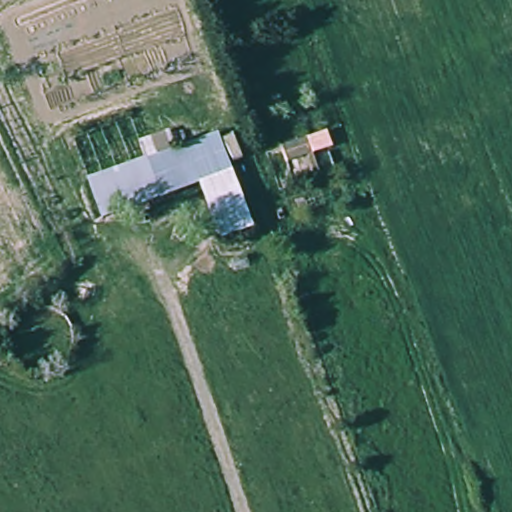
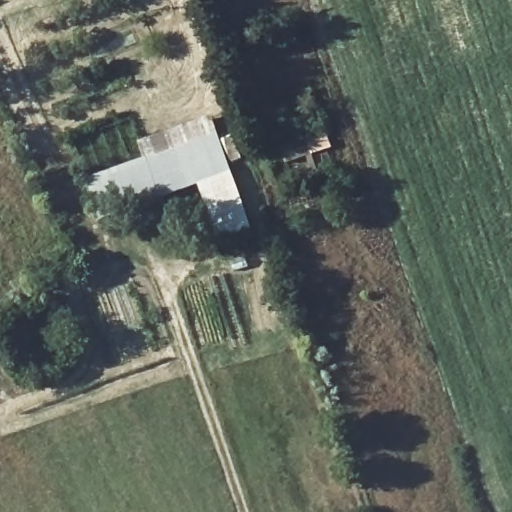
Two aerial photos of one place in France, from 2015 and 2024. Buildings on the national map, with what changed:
unchanged [(330,130),(338,151),(287,167),(280,147),(330,130)]
unchanged [(217,132),(252,231),(219,243),(196,186),(178,145),(217,132)]
unchanged [(101,220),(82,174),(178,145),(196,186),(101,220)]

